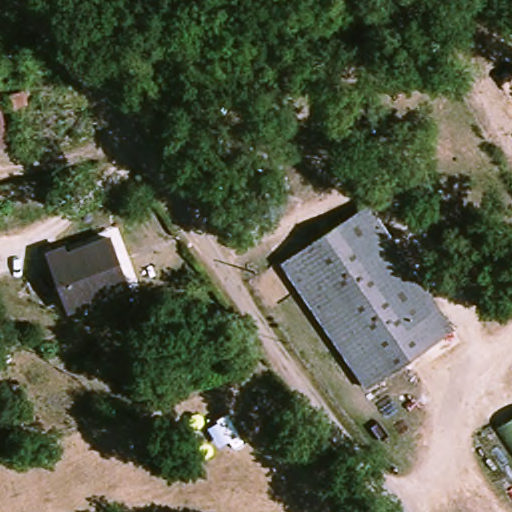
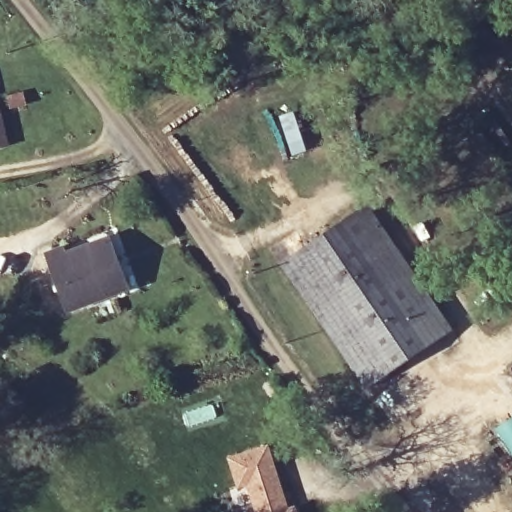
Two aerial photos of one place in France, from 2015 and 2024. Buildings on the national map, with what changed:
unchanged [(0,148),(0,140),(2,147),(0,148)]
unchanged [(454,335),(367,389),(286,262),(373,206),(454,335)]
unchanged [(70,248),(75,258),(114,244),(132,295),(76,315),(54,254),(70,248)]
unchanged [(512,414),(512,437),(502,420),(512,414)]
new [(270,444),(277,467),(273,468),(275,475),(280,478),(290,508),(297,506),(299,512),(261,512),(252,481),(242,483),(233,455),(270,444)]

